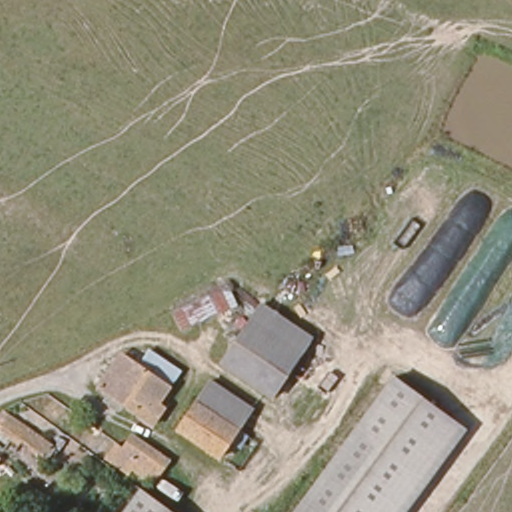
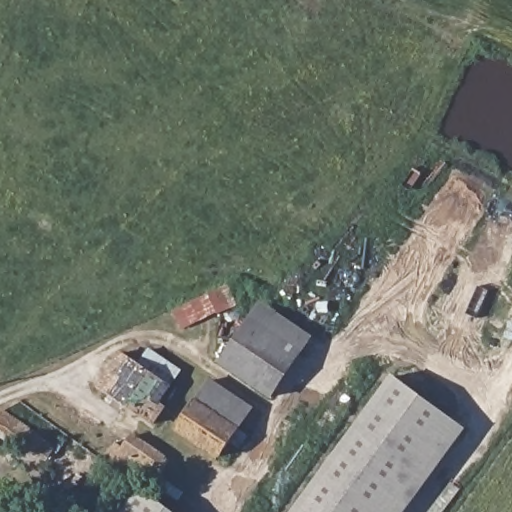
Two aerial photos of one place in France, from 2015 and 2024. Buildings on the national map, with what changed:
unchanged [(228,284),(237,305),(180,329),(172,309),(228,284)]
unchanged [(312,337),(293,364),(242,331),(260,303),(312,337)]
unchanged [(293,364),(274,391),(224,356),(242,331),(293,364)]
unchanged [(130,381),(135,373),(167,392),(156,406),(168,415),(155,430),(98,392),(116,370),(130,381)]
unchanged [(202,399),(213,383),(264,418),(253,433),(202,399)]
unchanged [(366,426),(397,385),(455,426),(425,465),(389,512),(300,512),(322,483),(366,426)]
unchanged [(242,448),(233,442),(221,458),(180,428),(202,399),(253,433),(242,448)]
unchanged [(0,410),(56,444),(46,459),(0,431),(0,410)]
unchanged [(134,437),(172,462),(156,482),(138,468),(132,476),(98,452),(110,434),(126,447),(134,437)]
unchanged [(141,492),(167,512),(125,512),(139,494),(141,492)]

